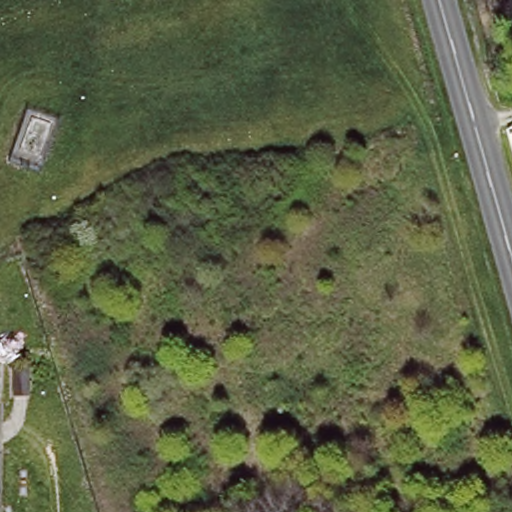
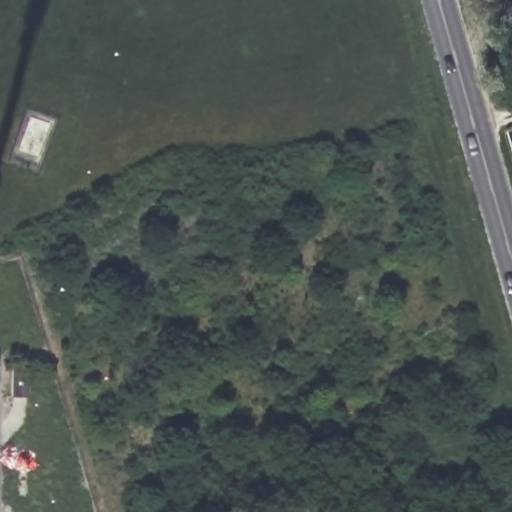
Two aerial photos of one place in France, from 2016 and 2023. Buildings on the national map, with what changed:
unchanged [(8,362),(24,362),(23,392),(8,392),(8,362)]

